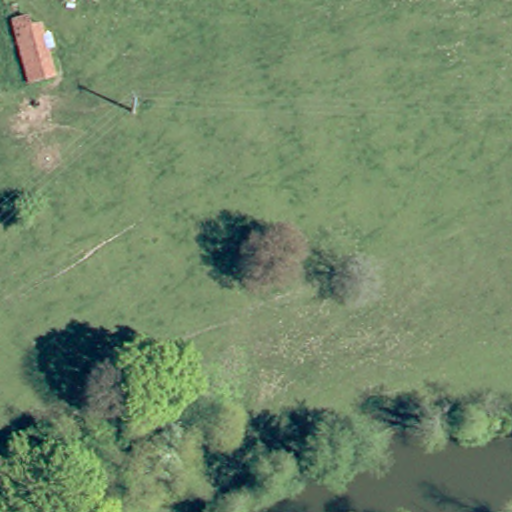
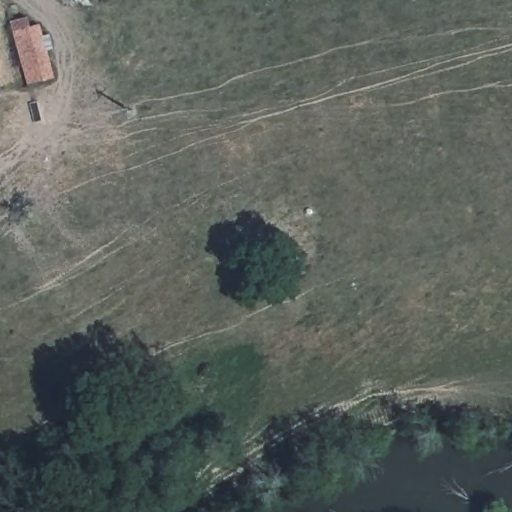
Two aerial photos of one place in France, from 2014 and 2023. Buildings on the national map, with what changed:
unchanged [(29,16),(32,28),(41,26),(52,76),(26,82),(12,20),(29,16)]

